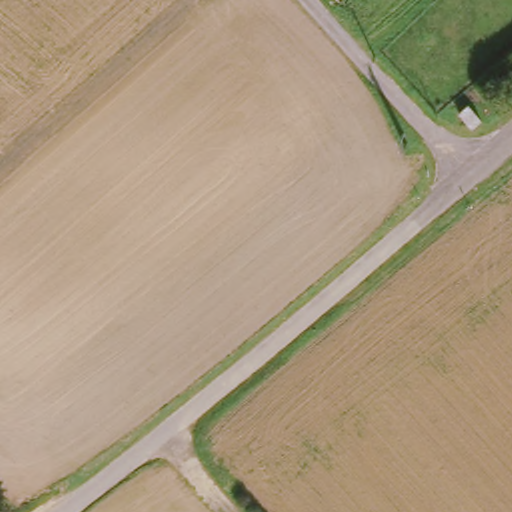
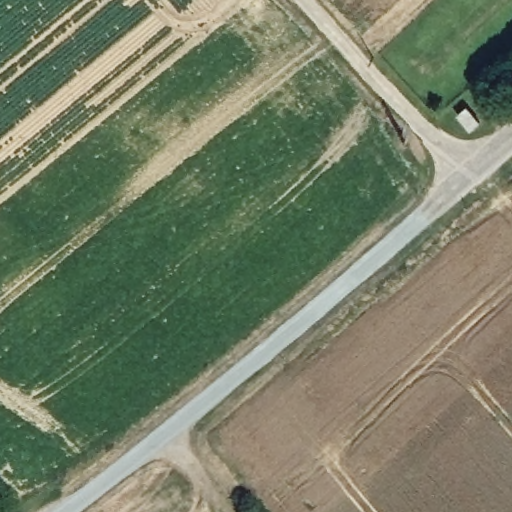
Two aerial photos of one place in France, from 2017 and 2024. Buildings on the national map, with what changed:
unchanged [(467,103),(479,120),(468,127),(457,110),(467,103)]

